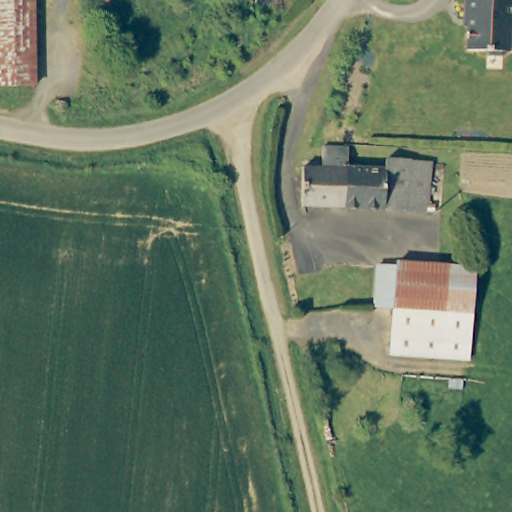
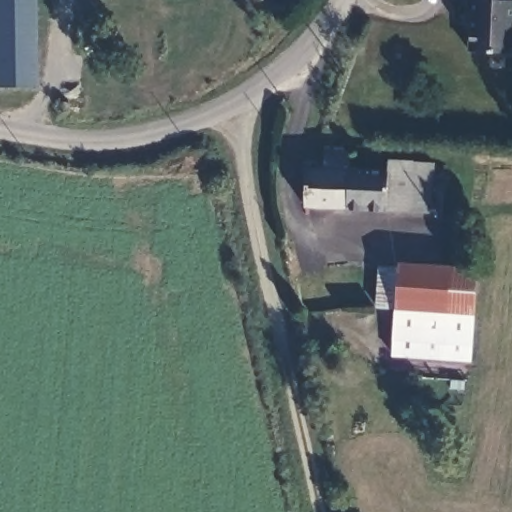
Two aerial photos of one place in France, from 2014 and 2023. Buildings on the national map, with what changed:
unchanged [(35,0),(38,85),(0,86),(0,0),(35,0)]
unchanged [(84,0),(105,0),(105,9),(84,10),(84,0)]
unchanged [(510,0),(508,47),(505,47),(502,48),(501,51),(487,50),(481,46),(464,45),(465,9),(461,9),(462,0),(510,0)]
unchanged [(344,169),(342,208),(300,206),(301,166),(318,167),(319,146),(344,148),(344,169)]
unchanged [(344,169),(381,170),(382,160),(427,163),(424,213),(342,208),(344,169)]
unchanged [(464,360),(388,355),(391,307),(371,306),(375,266),(394,268),(395,263),(470,268),(464,360)]
unchanged [(339,360),(341,326),(356,327),(355,358),(339,360)]

